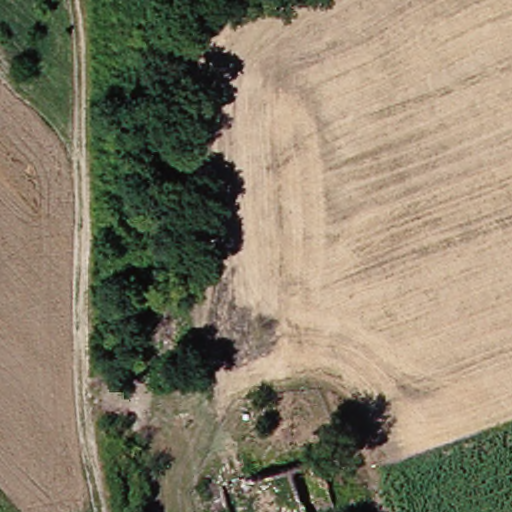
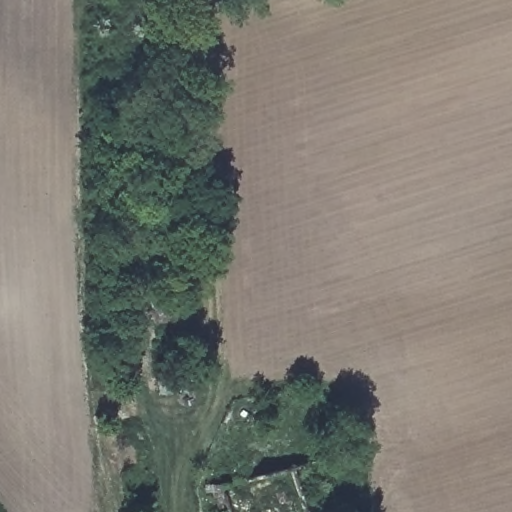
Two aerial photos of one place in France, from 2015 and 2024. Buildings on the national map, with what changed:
unchanged [(222,488),(228,512),(211,512),(207,493),(222,488)]

